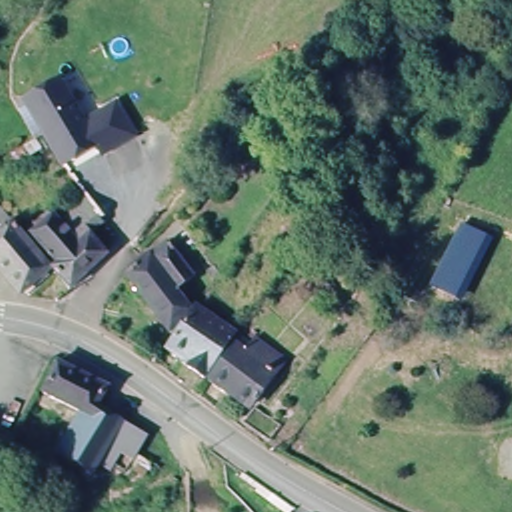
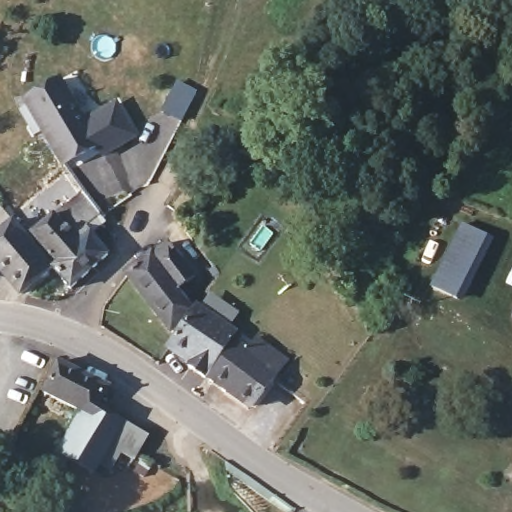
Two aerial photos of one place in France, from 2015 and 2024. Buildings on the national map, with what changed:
unchanged [(21,96),(62,73),(86,115),(116,98),(140,136),(104,158),(97,148),(64,167),(21,96)]
new [(175,84),(194,96),(179,124),(159,113),(175,84)]
unchanged [(50,154),(39,161),(34,154),(46,146),(50,154)]
unchanged [(108,256),(70,291),(58,278),(50,271),(56,266),(30,237),(79,195),(83,192),(101,221),(98,223),(85,231),(104,251),(108,256)]
unchanged [(6,218),(49,272),(21,294),(0,269),(0,212),(5,219),(6,218)]
unchanged [(494,239),(461,302),(428,287),(462,224),(494,239)]
unchanged [(164,333),(122,275),(168,242),(195,281),(179,294),(192,312),(187,318),(164,333)]
unchanged [(187,318),(192,312),(193,310),(229,336),(198,380),(182,368),(160,352),(164,347),(187,318)]
unchanged [(217,395),(202,383),(240,335),(279,364),(245,408),(240,414),(217,395)]
unchanged [(76,413),(38,392),(54,358),(108,386),(99,406),(149,437),(136,457),(119,448),(110,467),(102,463),(94,475),(56,451),(76,413)]

